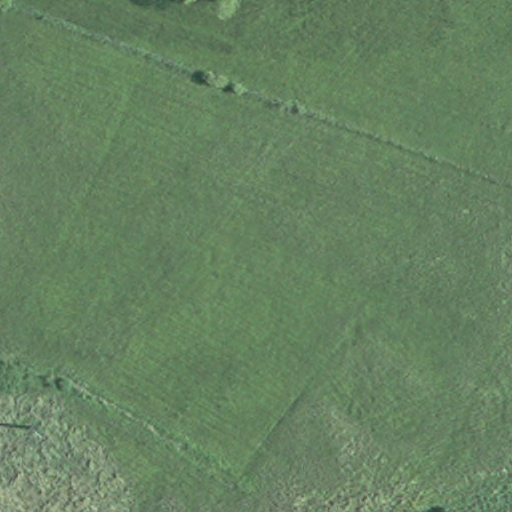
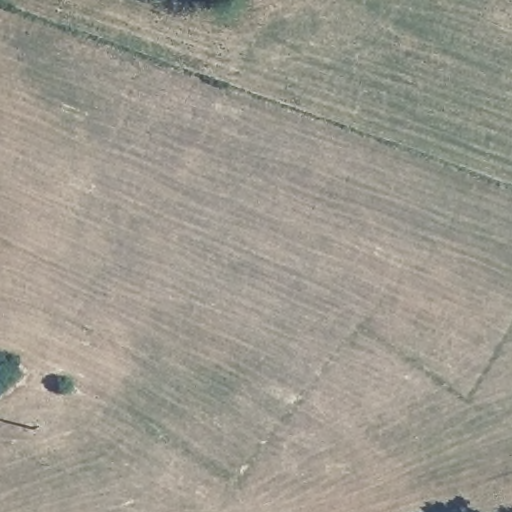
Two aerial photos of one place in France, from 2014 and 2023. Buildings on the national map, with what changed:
[]

